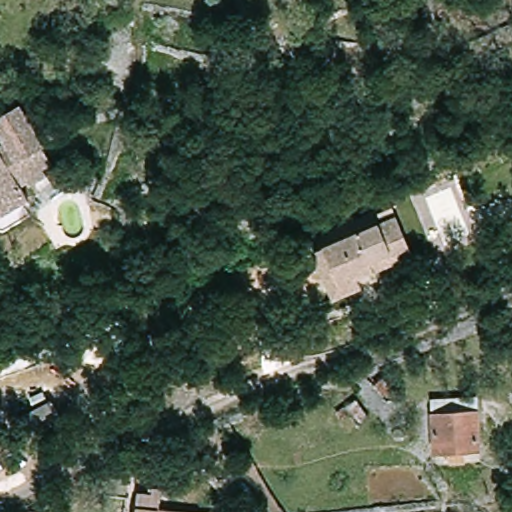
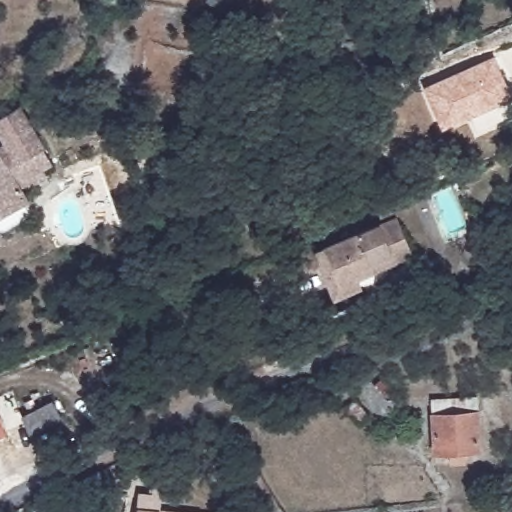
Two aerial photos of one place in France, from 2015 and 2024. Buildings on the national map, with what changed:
new [(423,87),(494,56),(512,96),(512,100),(441,129),(423,87)]
unchanged [(5,153),(10,151),(20,147),(10,123),(37,112),(53,152),(50,154),(57,171),(47,175),(49,182),(34,188),(32,184),(24,187),(30,204),(1,215),(0,212),(0,151),(5,153)]
unchanged [(332,301),(328,291),(312,254),(321,250),(396,218),(412,255),(354,280),(358,290),(332,301)]
unchanged [(453,466),(453,454),(438,455),(435,401),(480,399),(483,452),(469,453),(469,465),(453,466)]
unchanged [(60,417),(28,433),(20,418),(52,402),(60,417)]
unchanged [(343,407),(348,416),(339,421),(334,412),(343,407)]
unchanged [(7,437),(0,439),(0,417),(7,437)]
unchanged [(155,489),(164,490),(162,512),(168,512),(140,512),(142,492),(155,494),(155,489)]

